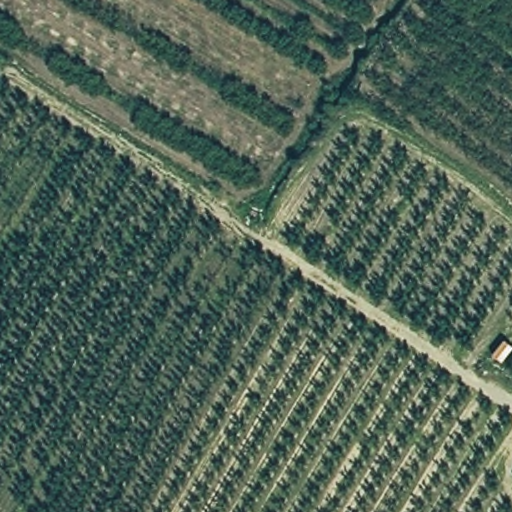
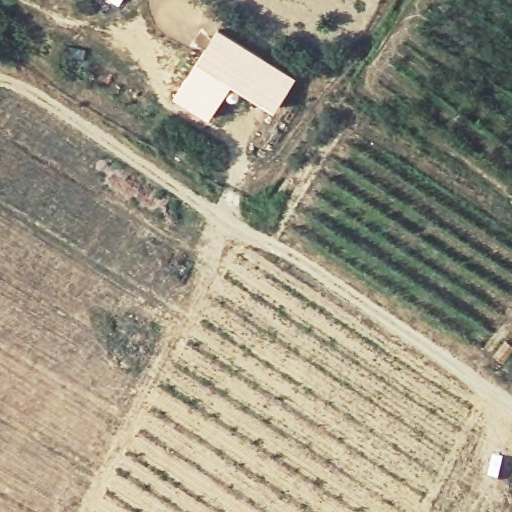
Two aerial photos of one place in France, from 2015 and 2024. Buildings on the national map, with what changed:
new [(105,0),(122,0),(118,7),(105,0)]
new [(218,29),(296,79),(274,112),(233,86),(208,121),(173,99),(218,29)]

